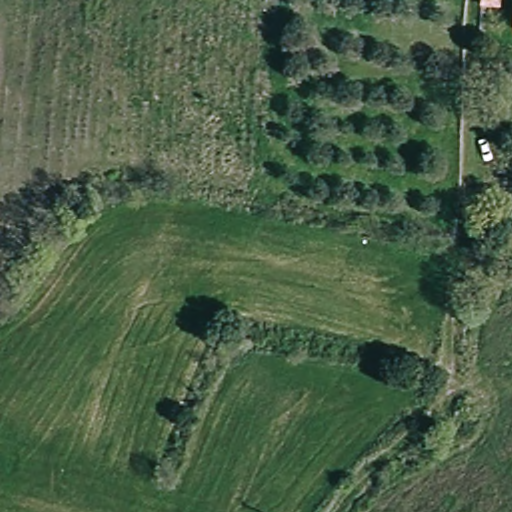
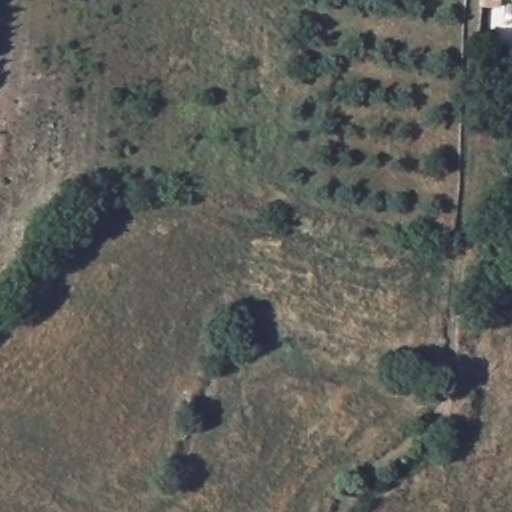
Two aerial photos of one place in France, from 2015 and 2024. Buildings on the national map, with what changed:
unchanged [(481,0),(498,0),(497,9),(480,7),(481,0)]

